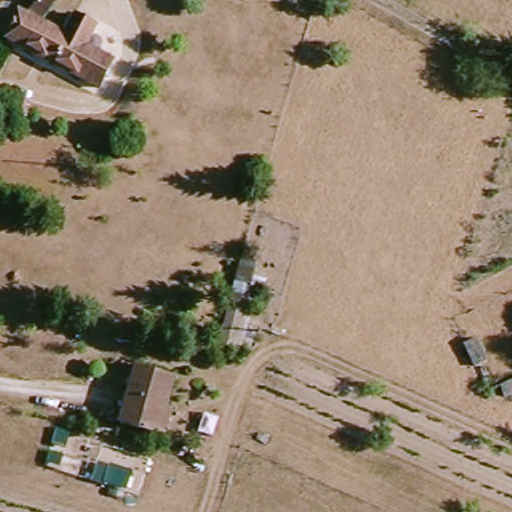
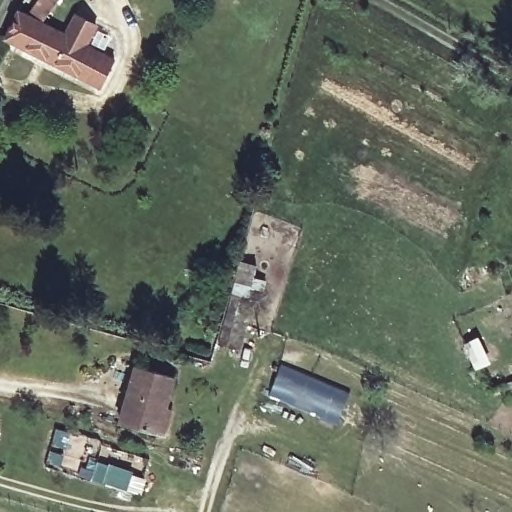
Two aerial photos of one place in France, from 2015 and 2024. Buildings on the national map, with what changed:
unchanged [(17,11),(27,14),(38,0),(59,0),(42,22),(62,32),(74,14),(97,27),(89,47),(115,62),(100,93),(2,41),(17,11)]
unchanged [(252,288),(260,292),(241,353),(219,347),(240,262),(258,268),(252,288)]
unchanged [(124,424),(132,396),(140,367),(175,377),(160,433),(124,424)]
new [(304,372),(344,389),(339,401),(347,404),(342,414),(329,408),(325,416),(272,394),(280,371),(300,380),(304,372)]

